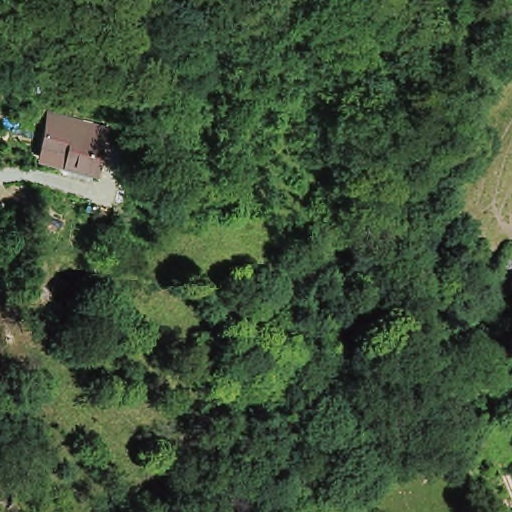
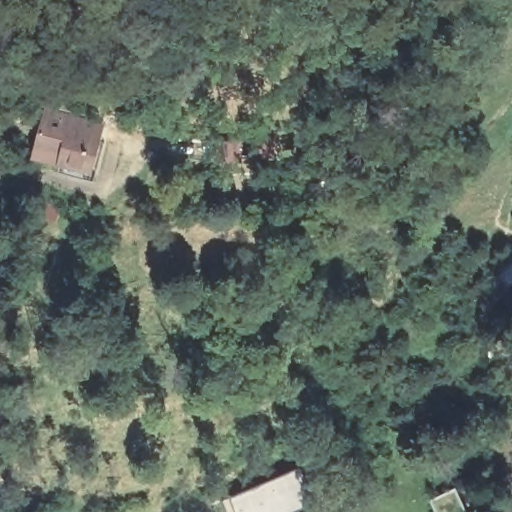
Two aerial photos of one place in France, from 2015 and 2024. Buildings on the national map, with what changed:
unchanged [(30,166),(32,152),(40,120),(67,125),(101,131),(97,148),(91,175),(59,167),(57,172),(30,166)]
new [(236,512),(231,496),(302,466),(317,500),(286,512),(236,512)]
new [(455,487),(467,512),(436,512),(430,499),(455,487)]
unchanged [(512,502),(512,512),(507,512),(505,505),(512,502)]

